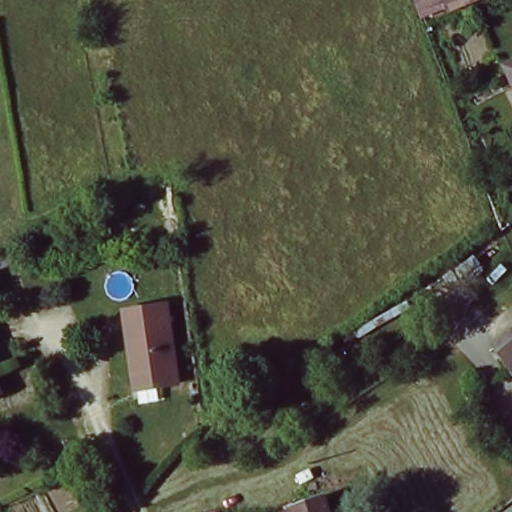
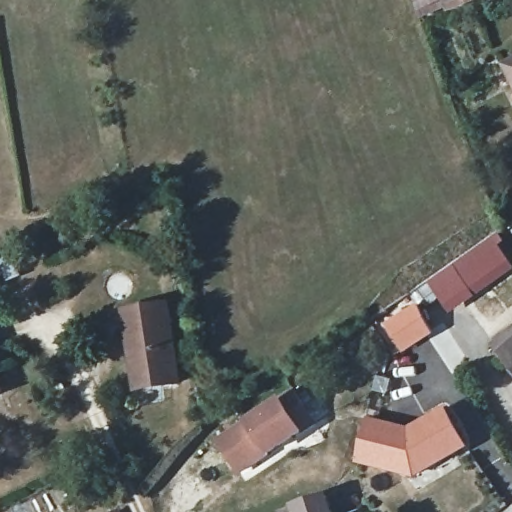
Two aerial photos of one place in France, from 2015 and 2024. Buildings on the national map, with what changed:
unchanged [(421,0),(454,0),(425,11),(421,0)]
unchanged [(504,62),(512,58),(512,77),(504,62)]
new [(495,237),(512,261),(512,271),(449,315),(428,283),(495,237)]
unchanged [(132,378),(122,305),(164,300),(175,378),(155,381),(133,385),(132,378)]
new [(414,305),(433,335),(404,353),(384,322),(414,305)]
unchanged [(493,337),(512,321),(512,362),(493,337)]
unchanged [(0,393),(0,377),(6,390),(0,393)]
new [(286,386),(307,417),(234,468),(212,438),(286,386)]
new [(364,414),(389,420),(388,426),(399,428),(443,404),(463,440),(413,469),(354,455),(364,414)]
unchanged [(332,512),(268,512),(325,490),(332,512)]

